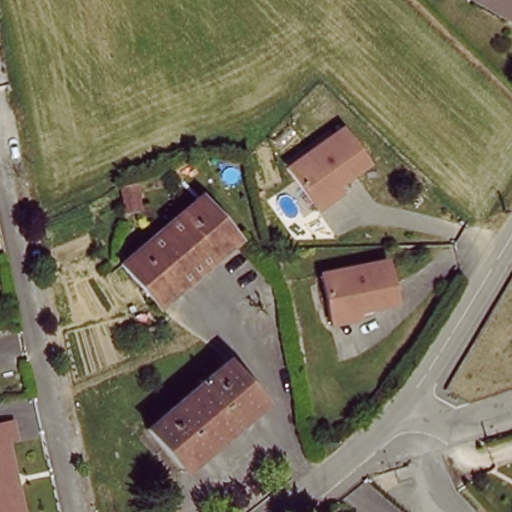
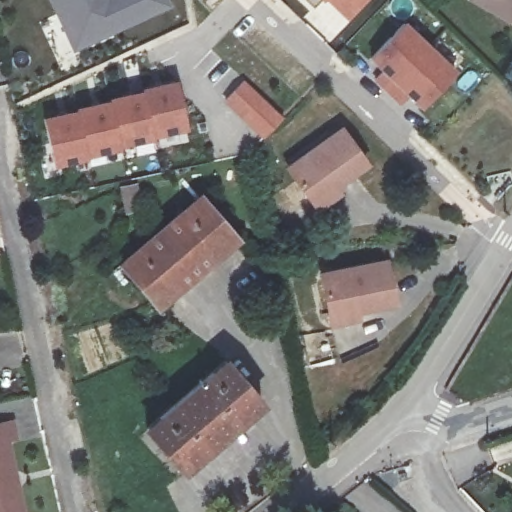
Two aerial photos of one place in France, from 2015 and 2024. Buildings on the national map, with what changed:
new [(73,52),(47,0),(162,0),(166,7),(73,52)]
new [(303,0),(318,0),(311,7),(303,0)]
new [(319,0),(367,0),(345,25),(319,0)]
unchanged [(471,0),(512,0),(512,15),(508,21),(471,0)]
new [(399,23),(449,72),(418,105),(406,94),(397,102),(374,81),(381,72),(368,57),(399,23)]
new [(241,83),(279,120),(258,140),(219,104),(241,83)]
new [(169,84),(181,135),(43,168),(31,120),(169,84)]
unchanged [(316,208),(309,197),(288,164),(344,130),(367,165),(334,186),(339,192),(316,208)]
unchanged [(240,245),(161,311),(122,269),(198,200),(240,245)]
unchanged [(331,321),(328,308),(321,272),(386,258),(396,300),(356,307),(359,315),(331,321)]
unchanged [(260,402),(183,468),(147,426),(223,361),(260,402)]
unchanged [(18,445),(8,446),(22,512),(0,512),(0,431),(15,428),(18,445)]

